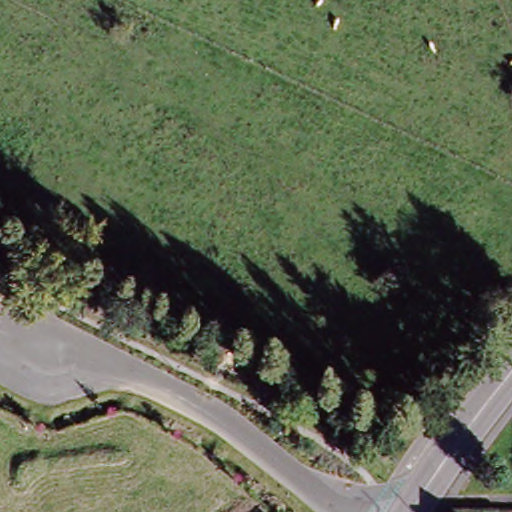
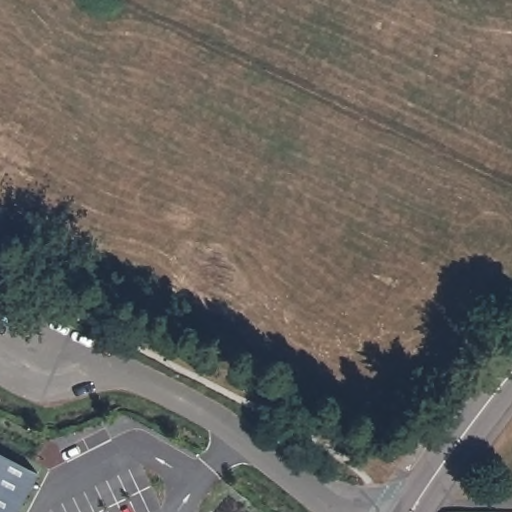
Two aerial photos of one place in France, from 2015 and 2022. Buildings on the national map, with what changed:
new [(28,466),(30,461),(39,465),(23,498),(1,508),(5,512),(0,512),(0,453),(0,452),(28,466)]

